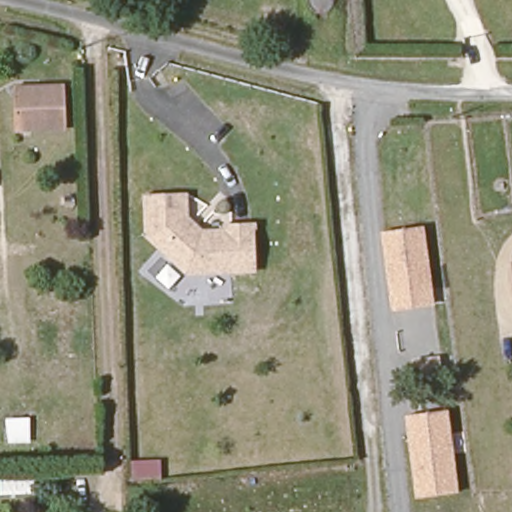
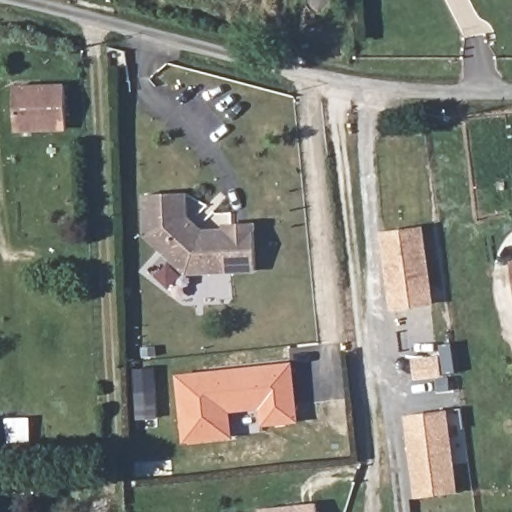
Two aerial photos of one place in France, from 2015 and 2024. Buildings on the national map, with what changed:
unchanged [(313,11),(303,1),(302,0),(336,0),(329,9),(313,11)]
unchanged [(12,132),(13,89),(64,87),(65,131),(12,132)]
unchanged [(190,217),(203,231),(226,231),(226,224),(256,224),(258,270),(189,271),(148,237),(148,193),(189,193),(190,217)]
unchanged [(392,306),(390,292),(380,229),(419,223),(429,285),(431,301),(392,306)]
unchanged [(512,261),(512,269),(511,262),(512,261)]
unchanged [(438,353),(441,376),(416,380),(415,357),(438,353)]
new [(299,422),(262,427),(260,411),(230,412),(233,438),(183,443),(175,374),(293,362),(299,422)]
new [(133,369),(156,367),(159,418),(136,420),(133,369)]
unchanged [(453,491),(416,496),(409,432),(407,413),(414,412),(443,407),(453,491)]
unchanged [(160,457),(161,478),(130,481),(130,458),(160,457)]
new [(316,502),(316,512),(261,512),(261,508),(316,502)]

